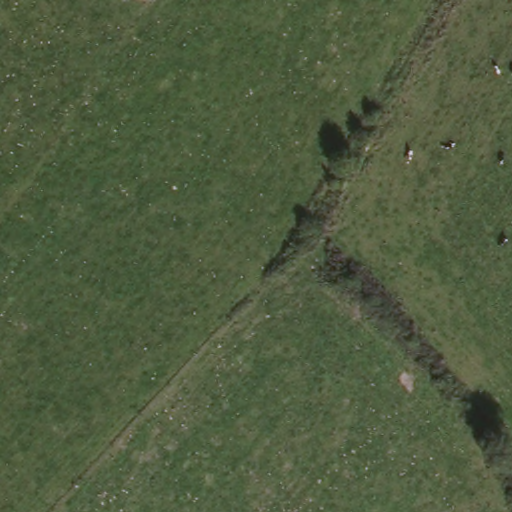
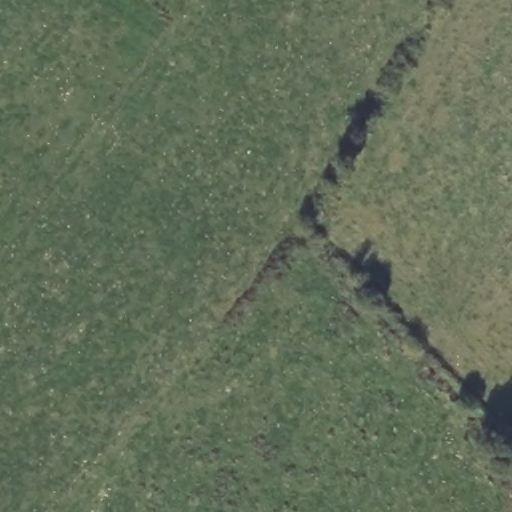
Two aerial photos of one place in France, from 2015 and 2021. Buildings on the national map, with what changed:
[]

